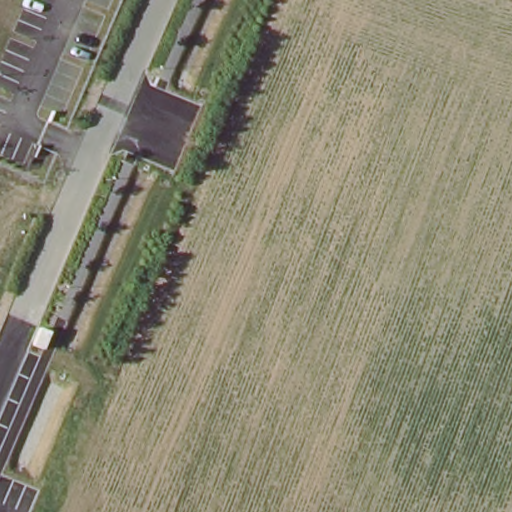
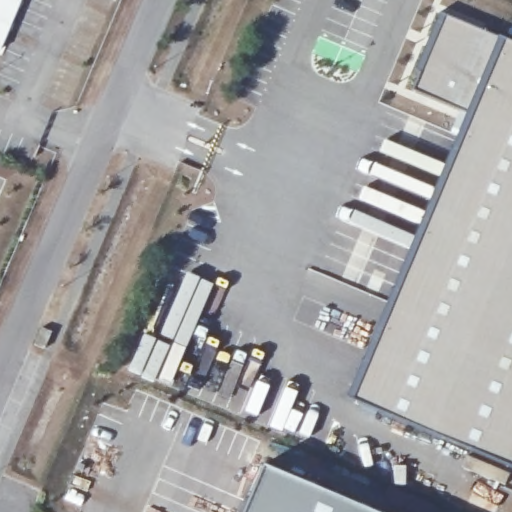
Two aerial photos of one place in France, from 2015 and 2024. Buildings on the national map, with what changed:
new [(0,50),(0,0),(22,0),(0,50)]
new [(467,112),(413,90),(422,72),(417,70),(441,15),(498,38),(512,44),(512,467),(346,399),(467,112)]
new [(243,512),(263,467),(371,512),(243,512)]

